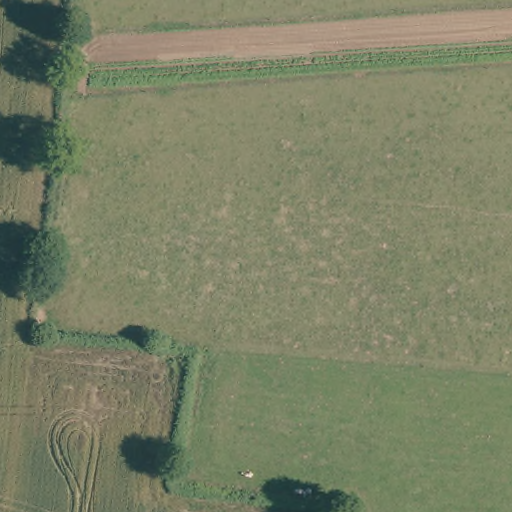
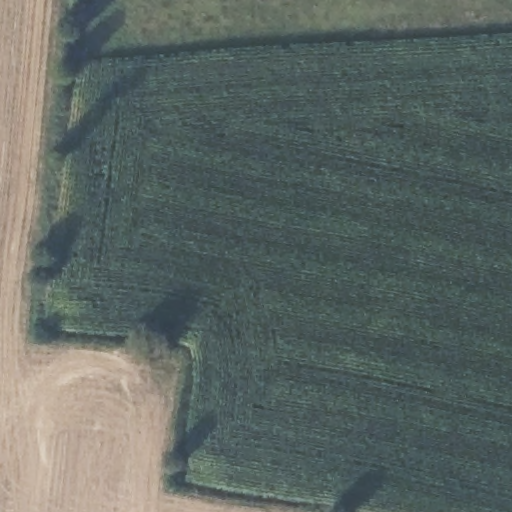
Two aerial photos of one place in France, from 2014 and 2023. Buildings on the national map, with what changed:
[]

